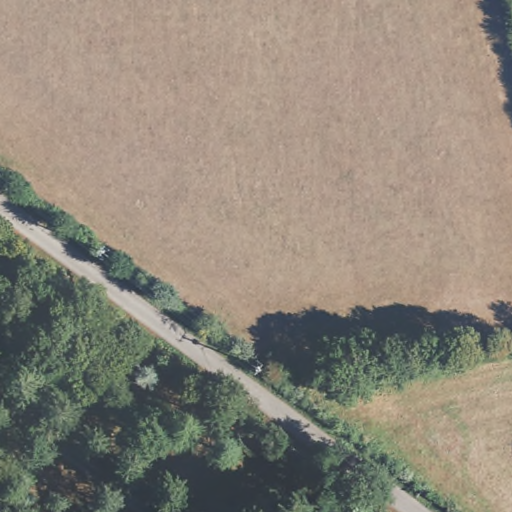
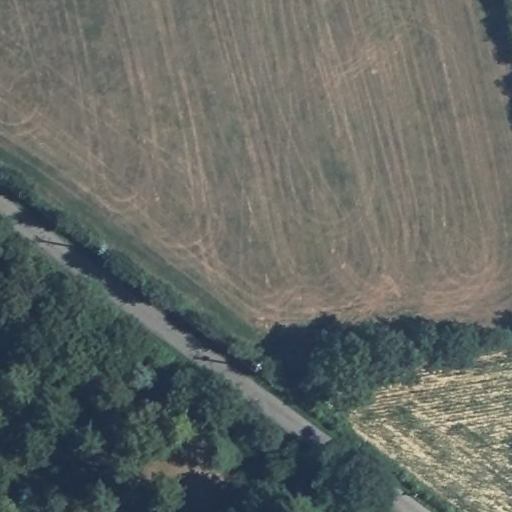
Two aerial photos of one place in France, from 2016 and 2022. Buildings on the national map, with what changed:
unchanged [(314,512),(326,497),(345,512),(314,512)]

